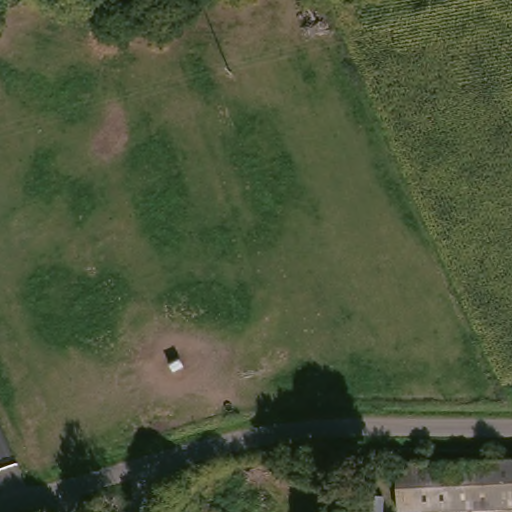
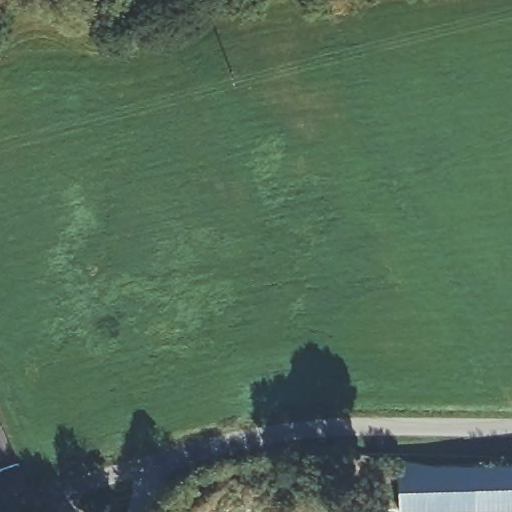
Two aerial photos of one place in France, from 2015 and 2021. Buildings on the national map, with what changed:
unchanged [(410,512),(399,512),(399,467),(435,467),(512,465),(512,508),(475,509),(410,512)]

